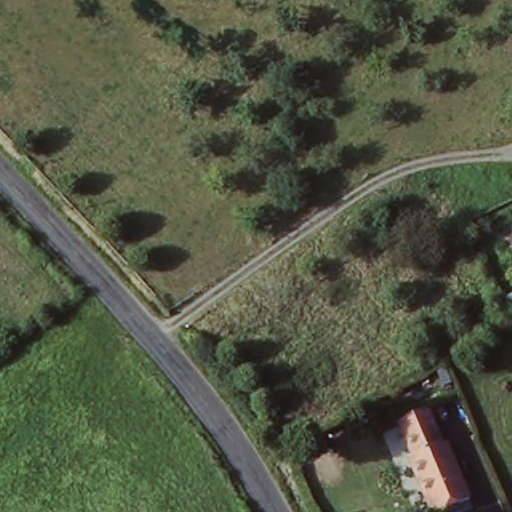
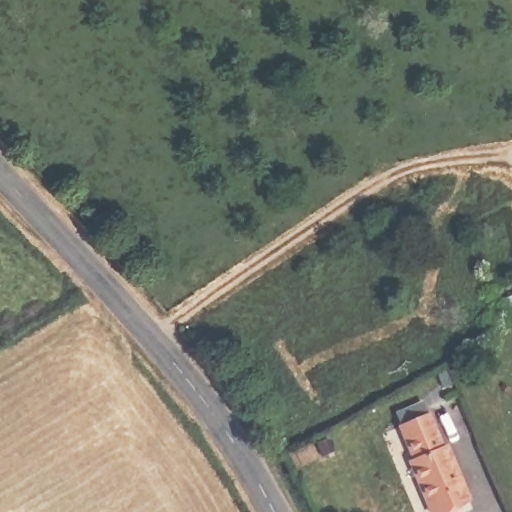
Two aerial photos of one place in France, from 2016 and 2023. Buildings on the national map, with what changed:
unchanged [(430,512),(397,433),(428,420),(444,455),(449,454),(473,510),(466,512),(430,512)]

